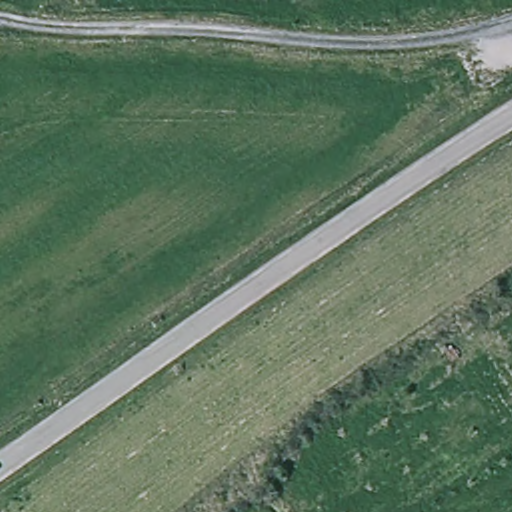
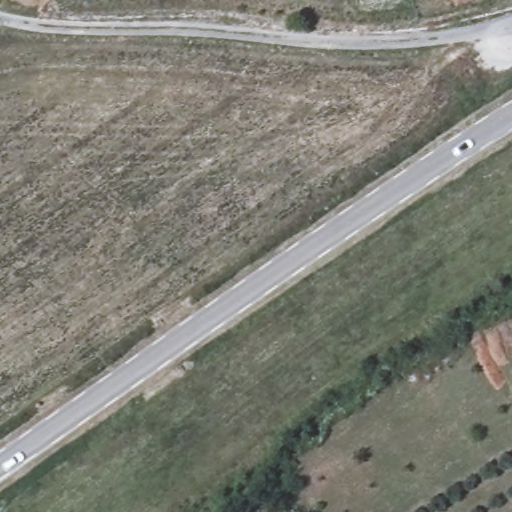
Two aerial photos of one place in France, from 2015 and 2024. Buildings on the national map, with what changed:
[]

